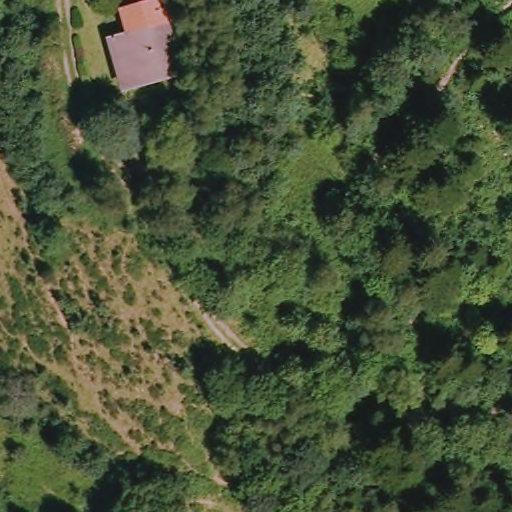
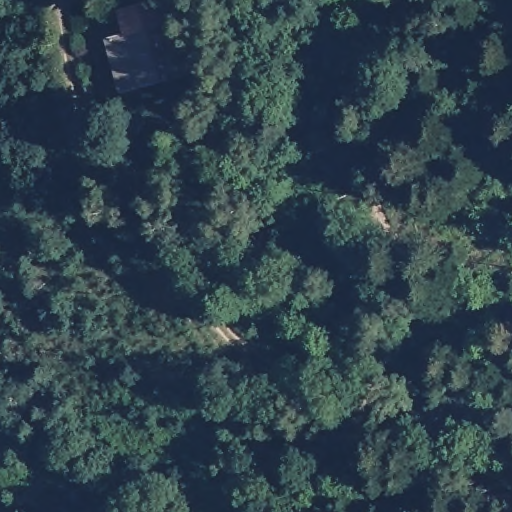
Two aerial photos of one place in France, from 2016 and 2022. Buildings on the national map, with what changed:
unchanged [(133,35),(127,10),(161,0),(164,0),(184,69),(167,74),(176,99),(157,102),(152,80),(128,90),(114,41),(133,35)]

